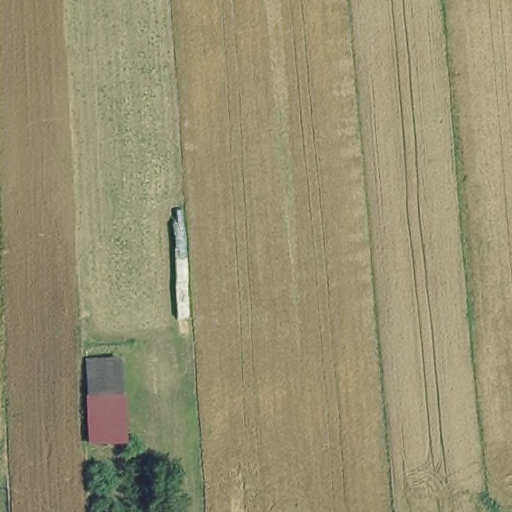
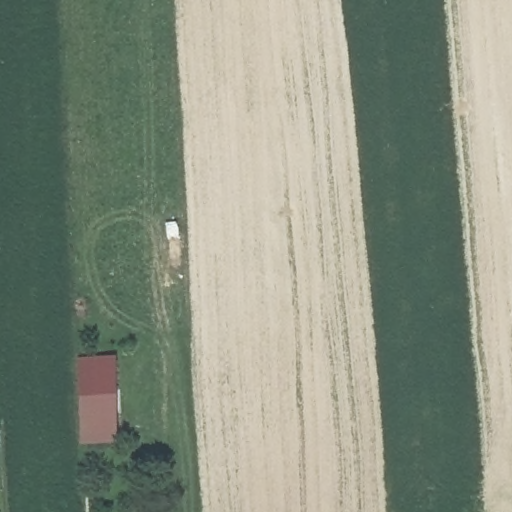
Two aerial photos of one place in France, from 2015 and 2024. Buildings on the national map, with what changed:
unchanged [(118,449),(77,449),(77,358),(116,358),(118,449)]

